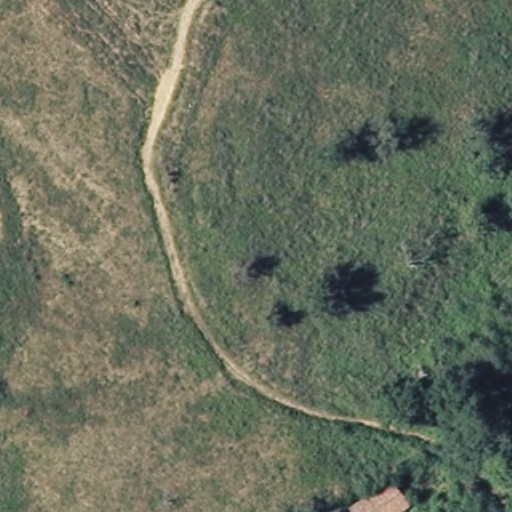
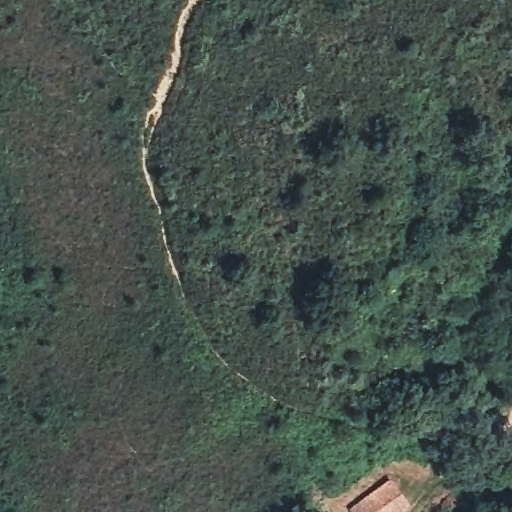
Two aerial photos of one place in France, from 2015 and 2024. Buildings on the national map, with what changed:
unchanged [(406,512),(354,512),(353,511),(393,484),(411,508),(406,512)]

